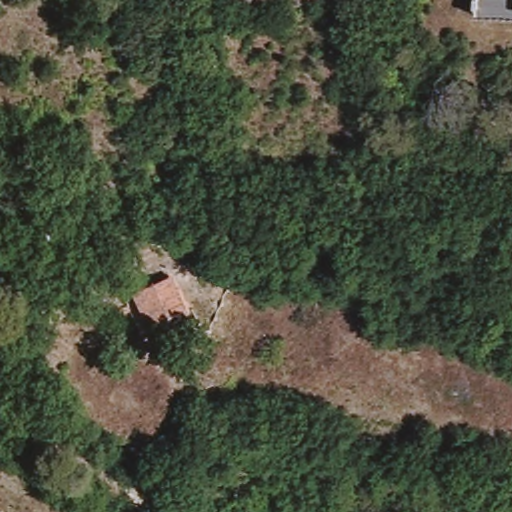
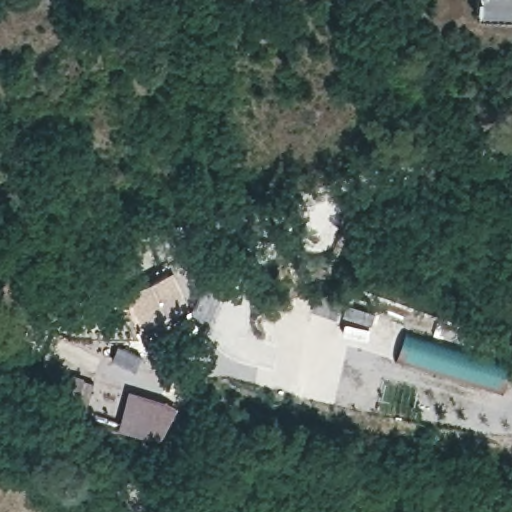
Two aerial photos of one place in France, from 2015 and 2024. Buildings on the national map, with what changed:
unchanged [(485,11),(485,0),(512,0),(512,11),(485,11)]
unchanged [(181,323),(158,333),(153,319),(138,324),(128,291),(166,275),(181,323)]
new [(406,332),(512,363),(504,389),(395,356),(406,332)]
new [(161,438),(118,425),(128,389),(166,399),(176,407),(161,438)]

